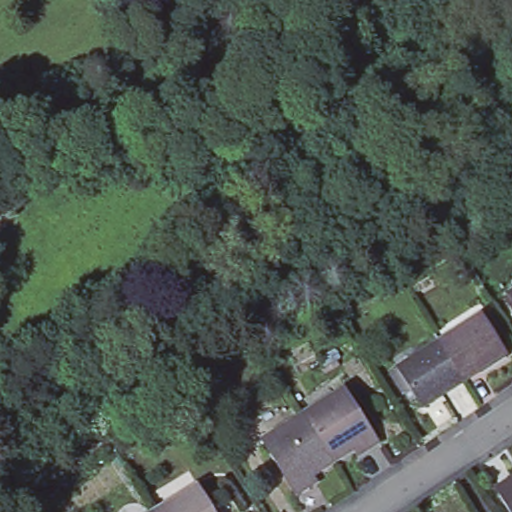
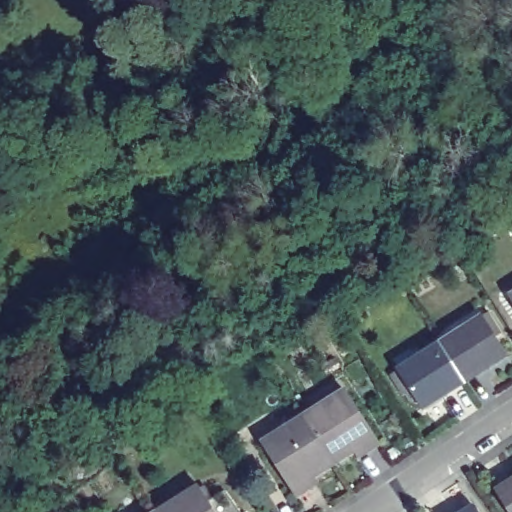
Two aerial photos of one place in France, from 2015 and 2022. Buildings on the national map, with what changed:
unchanged [(512,298),(512,300),(511,299),(512,298)]
unchanged [(481,321),(506,361),(466,385),(441,345),(481,321)]
unchanged [(424,411),(400,370),(441,345),(466,385),(424,411)]
unchanged [(305,414),(345,388),(380,442),(366,451),(363,445),(335,462),(305,414)]
unchanged [(307,481),(310,486),(297,494),(263,439),(305,414),(335,462),(307,481)]
unchanged [(512,487),(512,507),(503,493),(512,487)]
unchanged [(200,489),(214,512),(162,512),(200,489)]

